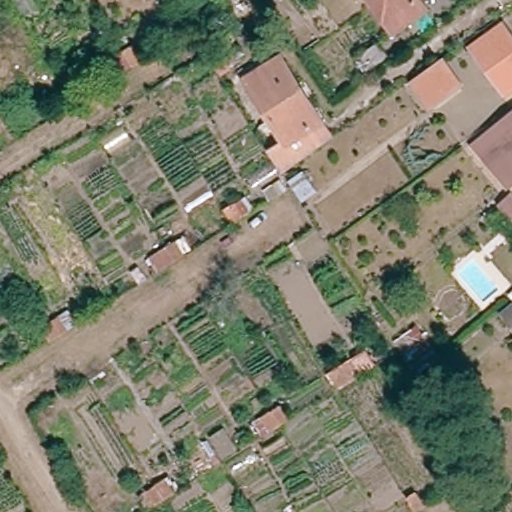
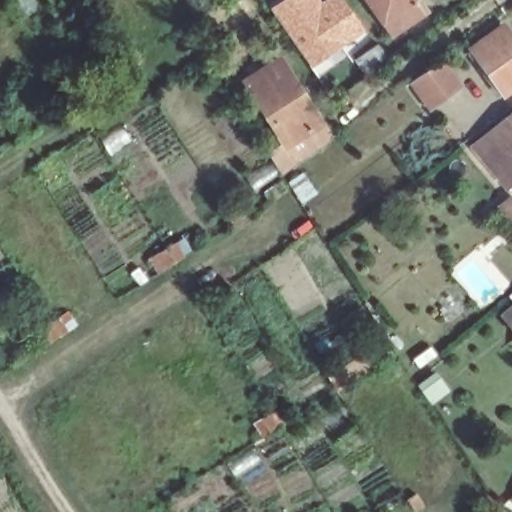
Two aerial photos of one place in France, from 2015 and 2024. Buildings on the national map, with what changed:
new [(345,0),(366,30),(342,47),(350,60),(319,80),(267,7),(278,0),(345,0)]
unchanged [(426,14),(394,37),(368,0),(420,0),(417,2),(426,14)]
unchanged [(512,87),(505,92),(471,48),(503,25),(512,37),(512,87)]
unchanged [(388,60),(367,75),(358,62),(380,46),(388,60)]
unchanged [(322,120),(288,140),(249,77),(272,61),(281,56),(316,111),(322,120)]
unchanged [(460,84),(432,105),(413,79),(442,59),(460,84)]
unchanged [(469,149),(512,112),(512,186),(504,192),(469,149)]
unchanged [(288,140),(322,120),(335,140),(281,174),(268,153),(288,140)]
unchanged [(512,305),(512,331),(500,316),(512,305)]

